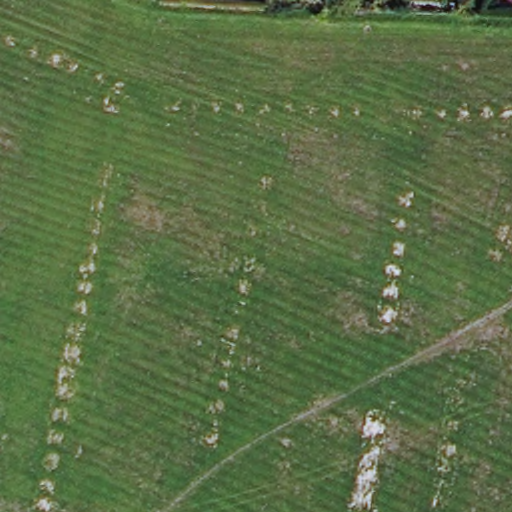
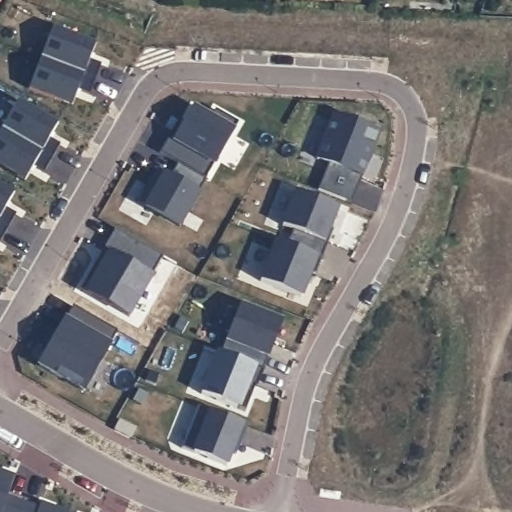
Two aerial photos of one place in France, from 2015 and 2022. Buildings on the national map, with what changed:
new [(95,45),(89,61),(101,65),(95,80),(40,59),(52,28),(95,45)]
new [(40,59),(95,80),(89,95),(77,91),(71,106),(28,90),(40,59)]
new [(47,138),(58,144),(50,158),(0,129),(0,128),(17,100),(56,123),(47,138)]
new [(334,116),(378,134),(361,177),(362,178),(351,205),(317,192),(328,165),(316,161),(334,116)]
new [(179,121),(184,124),(179,134),(173,131),(179,121)]
new [(42,172),(31,166),(22,180),(0,167),(0,129),(50,158),(42,172)]
new [(205,181),(177,228),(137,204),(156,171),(170,179),(177,165),(205,181)]
new [(5,209),(16,215),(9,229),(0,224),(0,187),(14,194),(5,209)]
new [(327,244),(320,260),(287,247),(293,232),(282,227),(295,193),(337,210),(324,242),(329,230),(332,232),(327,244)]
new [(0,243),(0,224),(9,229),(0,243)]
new [(162,258),(128,318),(80,290),(95,265),(100,268),(105,260),(99,257),(115,230),(162,258)]
new [(320,260),(314,276),(310,274),(300,299),(260,282),(275,242),(320,260)]
new [(234,302),(273,318),(264,342),(267,343),(257,369),(214,352),(234,302)]
new [(85,388),(40,362),(52,341),(59,344),(64,336),(57,332),(72,306),(117,332),(85,388)]
new [(257,369),(250,386),(242,382),(238,393),(244,396),(238,411),(200,395),(216,353),(257,369)]
new [(246,427),(239,445),(235,443),(225,467),(180,449),(197,408),(246,427)]
new [(135,428),(130,438),(114,430),(119,421),(135,428)]
new [(235,443),(239,445),(235,454),(231,452),(235,443)]
new [(9,489),(25,495),(18,512),(0,512),(0,472),(13,477),(9,489)]
new [(25,495),(67,512),(18,512),(25,495)]

